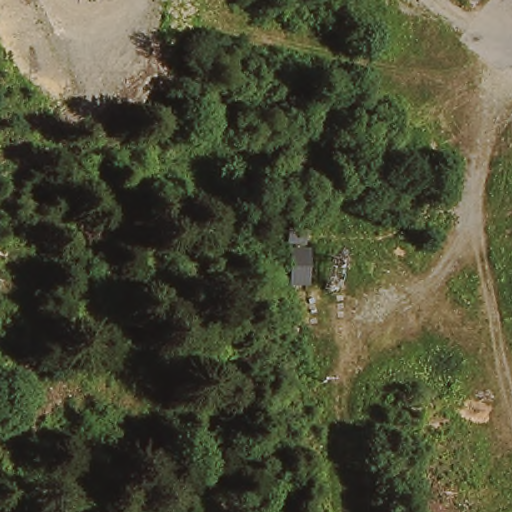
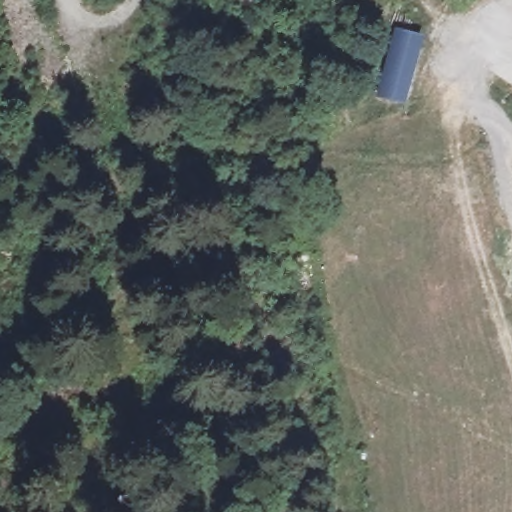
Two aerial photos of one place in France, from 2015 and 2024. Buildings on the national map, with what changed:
new [(396,29),(425,38),(406,104),(377,96),(396,29)]

